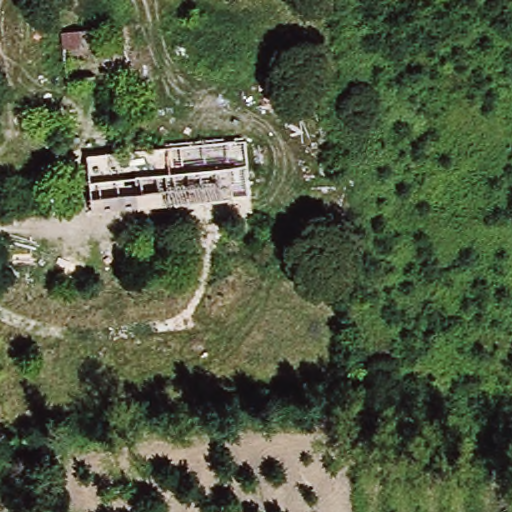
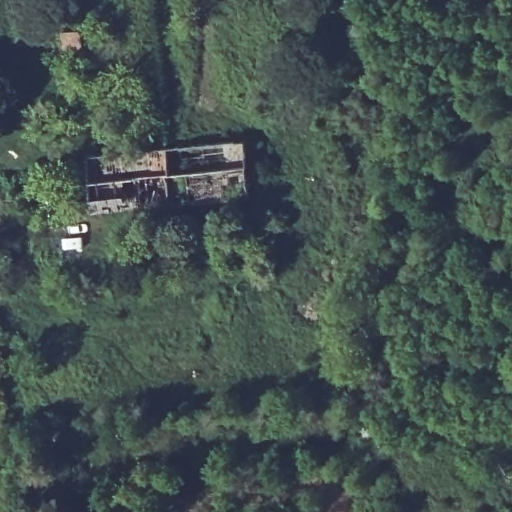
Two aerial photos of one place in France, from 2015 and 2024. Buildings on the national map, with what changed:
unchanged [(250,198),(133,211),(126,146),(243,132),(250,198)]

